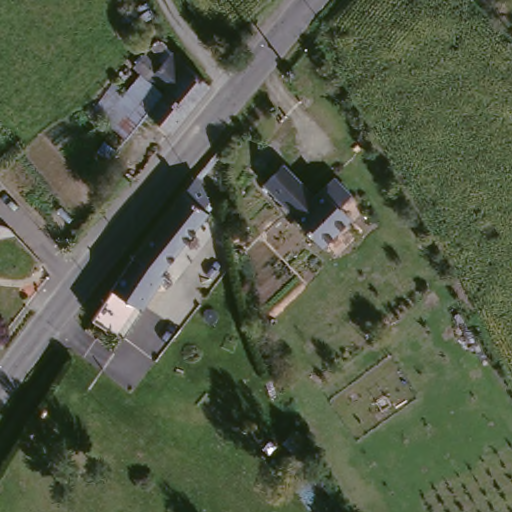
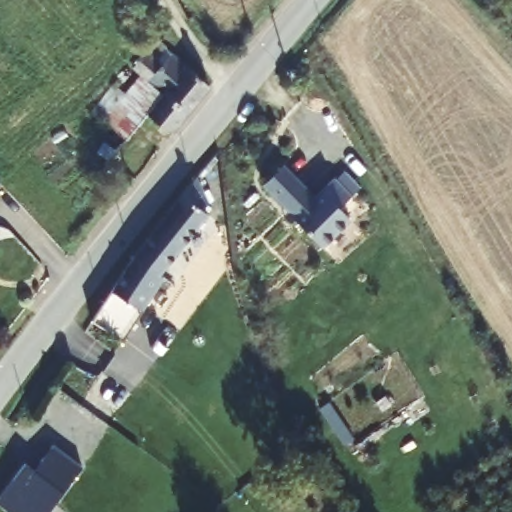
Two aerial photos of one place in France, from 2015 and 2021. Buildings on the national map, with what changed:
unchanged [(213,82),(176,130),(153,111),(137,108),(124,96),(145,71),(139,66),(137,65),(144,56),(150,50),(158,56),(169,44),(213,82)]
unchanged [(194,234),(168,273),(133,327),(122,343),(94,324),(104,307),(146,239),(207,165),(219,189),(213,197),(217,201),(194,234)]
unchanged [(289,215),(295,210),(268,184),(287,165),(320,196),(339,176),(356,194),(344,206),(355,217),(328,245),(300,216),(295,221),(289,215)]
new [(40,461),(52,445),(82,467),(48,512),(10,512),(0,505),(0,496),(24,464),(33,470),(40,461)]

